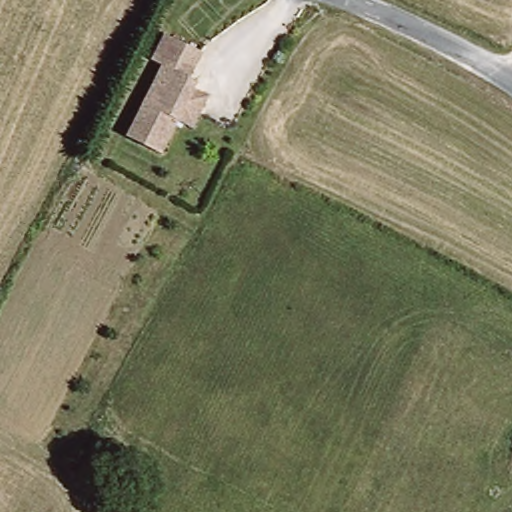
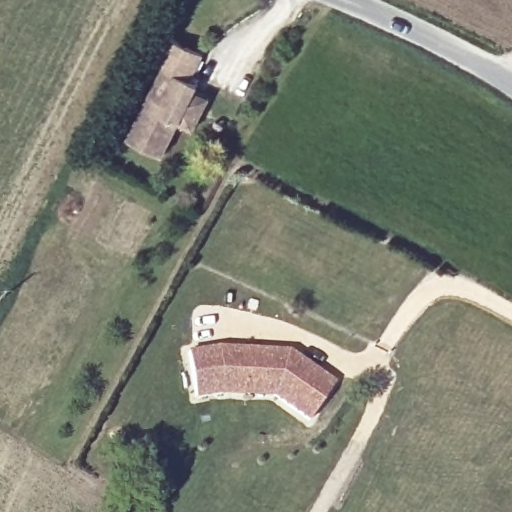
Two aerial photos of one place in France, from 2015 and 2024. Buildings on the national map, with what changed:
unchanged [(161,158),(127,139),(165,69),(153,63),(167,38),(204,58),(192,80),(198,84),(195,94),(210,103),(193,131),(179,124),(161,158)]
new [(220,347),(288,349),(337,383),(310,421),(273,394),(220,394),(195,399),(187,352),(220,347)]

